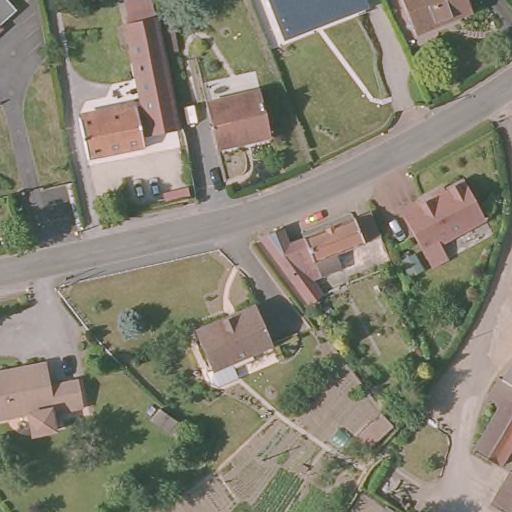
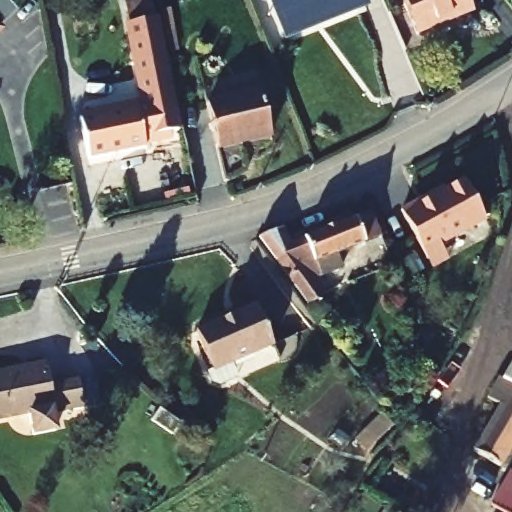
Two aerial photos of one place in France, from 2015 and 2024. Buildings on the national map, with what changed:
unchanged [(137,131),(140,141),(83,153),(75,111),(140,98),(124,17),(122,3),(138,0),(148,0),(150,11),(172,123),(137,131)]
unchanged [(359,9),(280,40),(265,0),(355,0),(359,9)]
unchanged [(467,15),(410,37),(395,0),(461,0),(467,15)]
unchanged [(0,45),(0,8),(3,5),(4,4),(7,2),(8,3),(22,21),(10,32),(3,37),(6,40),(0,45)]
unchanged [(255,96),(266,139),(212,152),(201,108),(255,96)]
unchanged [(427,259),(423,252),(401,210),(417,201),(419,204),(465,180),(485,220),(469,229),(440,244),(443,251),(427,259)]
unchanged [(254,237),(278,226),(284,243),(349,217),(357,242),(342,247),(348,262),(316,274),(324,290),(303,304),(254,237)]
unchanged [(267,338),(227,356),(232,370),(214,378),(207,375),(203,365),(207,363),(191,326),(250,300),(267,338)]
unchanged [(502,374),(512,357),(512,380),(507,377),(502,374)]
unchanged [(78,406),(61,410),(46,413),(49,429),(27,434),(22,412),(0,417),(0,371),(41,362),(45,383),(74,378),(78,406)]
unchanged [(487,393),(500,372),(502,374),(507,377),(512,380),(512,441),(500,461),(472,445),(500,400),(487,393)]
unchanged [(172,433),(151,419),(159,408),(179,423),(172,433)]
unchanged [(512,512),(490,498),(512,465),(512,512)]

